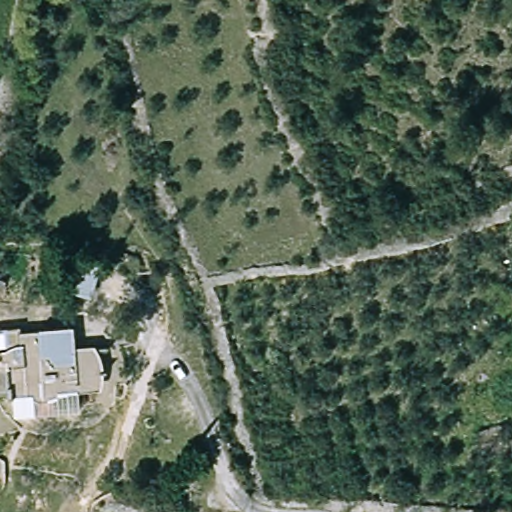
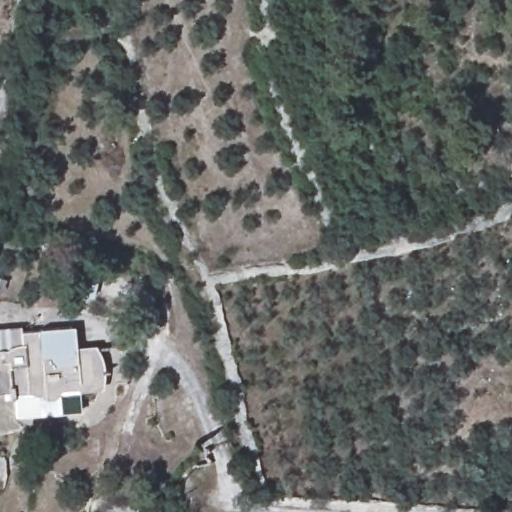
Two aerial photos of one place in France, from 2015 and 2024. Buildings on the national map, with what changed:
unchanged [(62,294),(72,259),(98,267),(88,301),(62,294)]
unchanged [(2,283),(0,291),(0,282),(2,283)]
unchanged [(22,330),(22,336),(76,330),(77,352),(95,350),(100,357),(102,364),(104,394),(80,395),(81,415),(16,419),(16,395),(0,396),(0,332),(22,330)]

